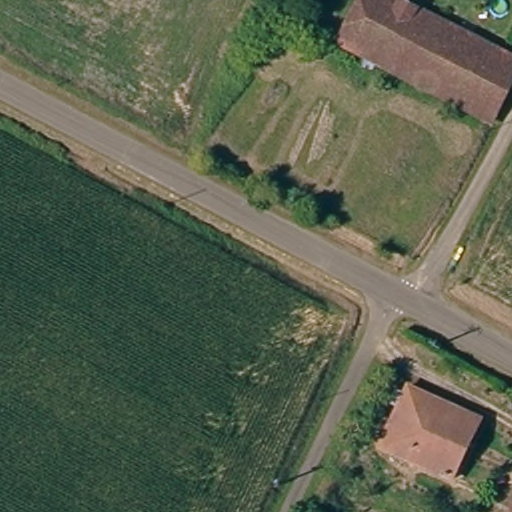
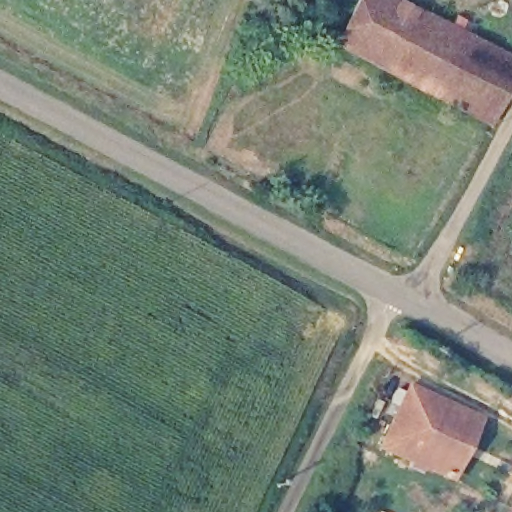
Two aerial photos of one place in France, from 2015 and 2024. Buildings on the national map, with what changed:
unchanged [(360,0),(411,0),(506,51),(512,55),(512,83),(491,124),(337,43),(360,0)]
unchanged [(488,392),(444,367),(451,348),(496,373),(488,392)]
unchanged [(449,486),(389,454),(417,391),(480,422),(449,486)]

